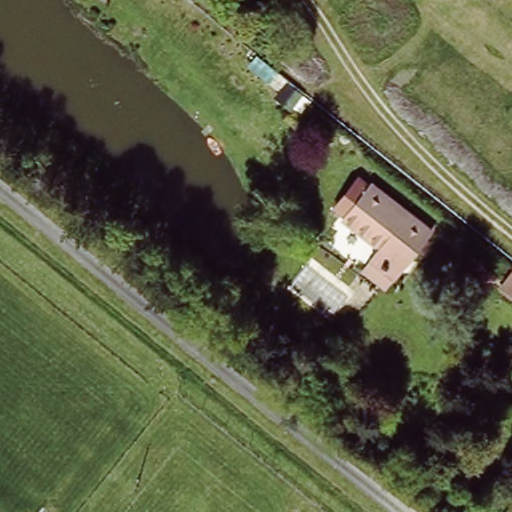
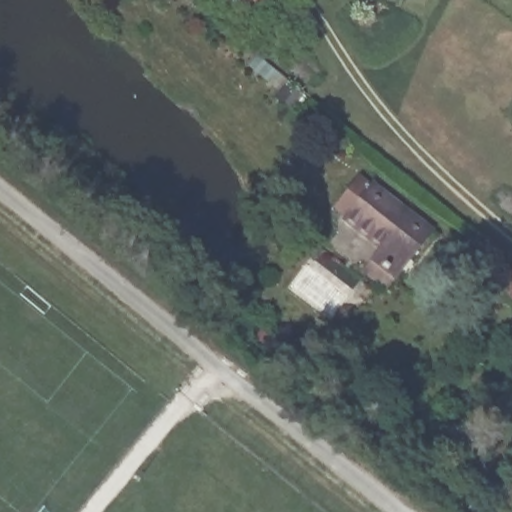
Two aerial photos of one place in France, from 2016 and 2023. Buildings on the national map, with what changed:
unchanged [(399,273),(374,253),(384,240),(350,212),(379,176),(439,225),(399,273)]
unchanged [(507,286),(512,280),(512,290),(507,286)]

